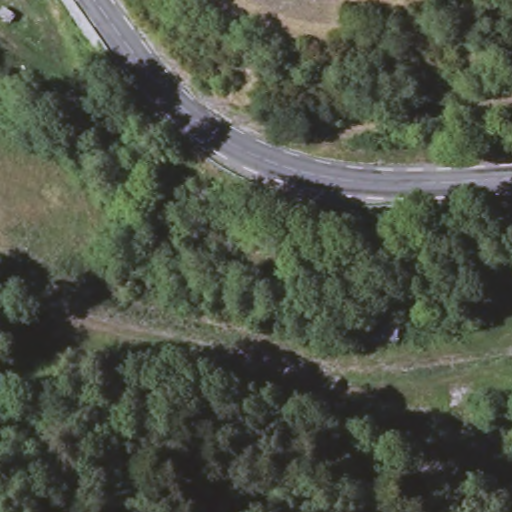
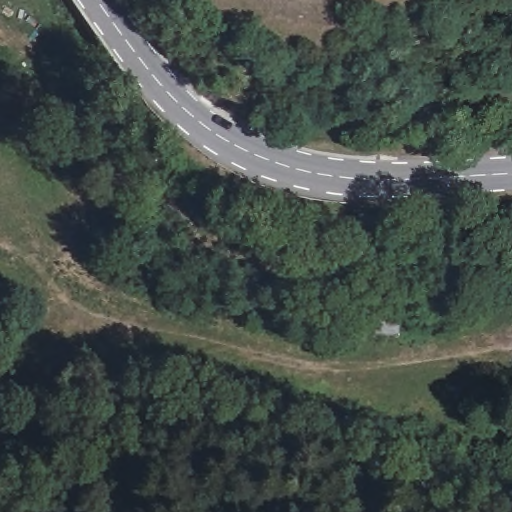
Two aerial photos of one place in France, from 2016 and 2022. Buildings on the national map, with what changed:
unchanged [(337,330),(341,302),(402,307),(397,332),(337,330)]

